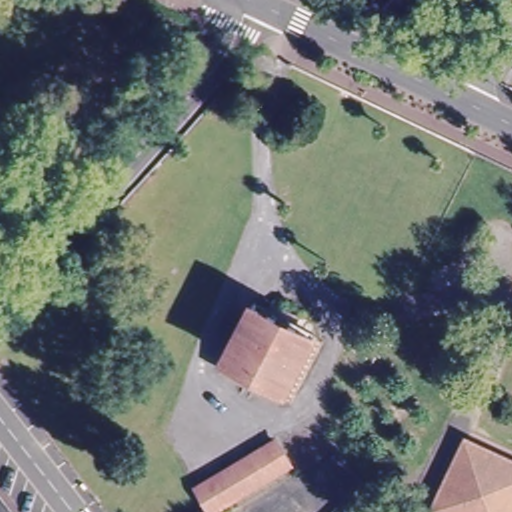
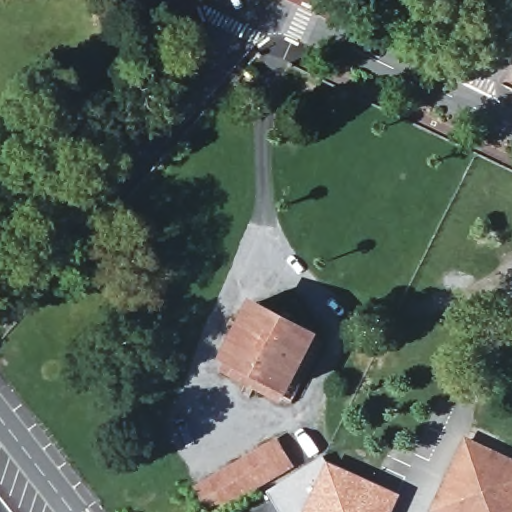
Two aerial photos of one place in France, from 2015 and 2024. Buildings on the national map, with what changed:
unchanged [(287,389),(276,383),(217,353),(222,343),(221,342),(249,288),(311,320),(320,326),(287,389)]
unchanged [(290,466),(213,512),(212,512),(198,488),(276,442),(290,466)]
unchanged [(512,512),(436,512),(466,446),(512,467),(512,512)]
new [(325,456),(330,462),(401,496),(394,512),(281,512),(268,492),(325,456)]

